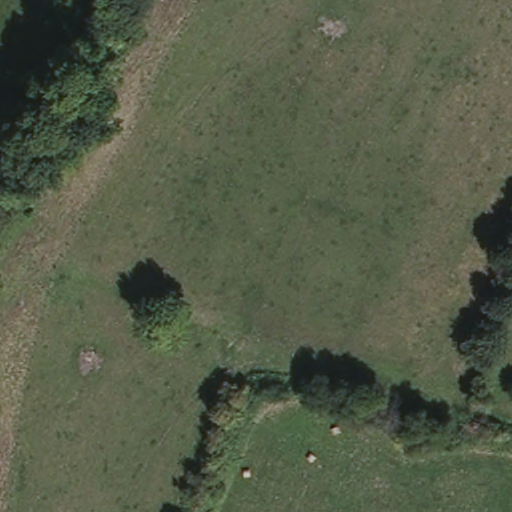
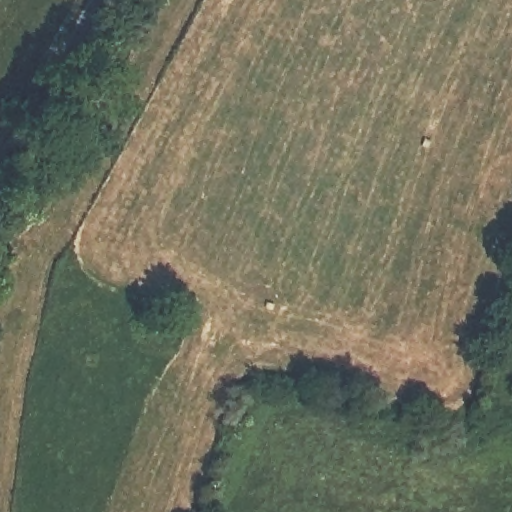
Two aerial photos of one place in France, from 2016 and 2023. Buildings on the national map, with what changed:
unchanged [(144,320),(176,332),(170,352),(137,342),(144,320)]

